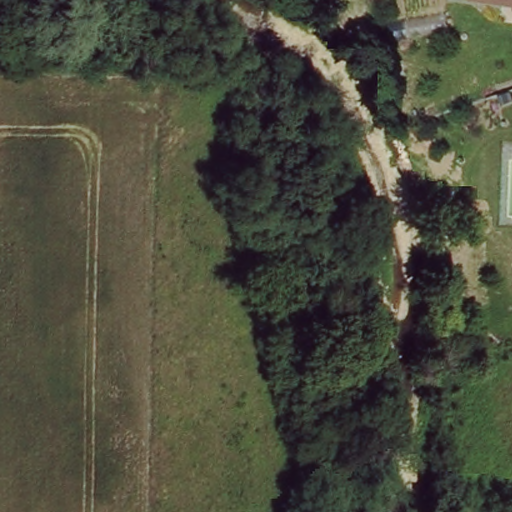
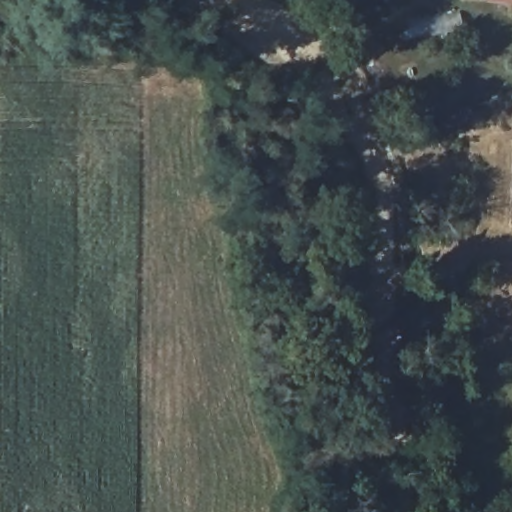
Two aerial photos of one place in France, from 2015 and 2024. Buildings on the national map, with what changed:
unchanged [(512,7),(493,5),(494,0),(512,0),(512,7)]

